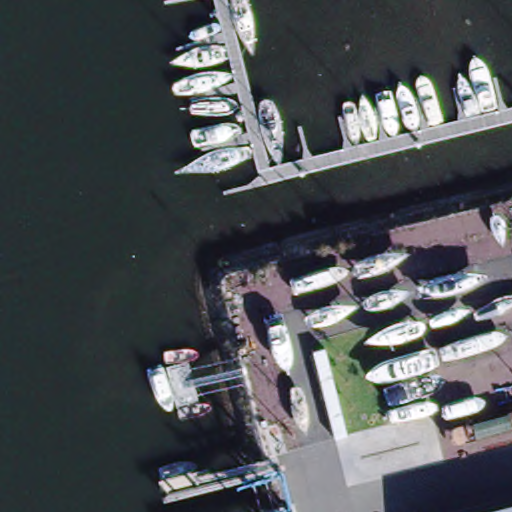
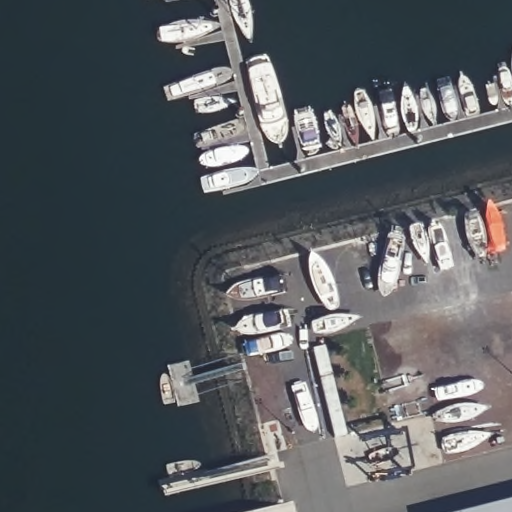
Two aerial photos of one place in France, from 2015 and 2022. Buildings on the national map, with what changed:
unchanged [(512,505),(512,512),(485,512),(512,505)]

